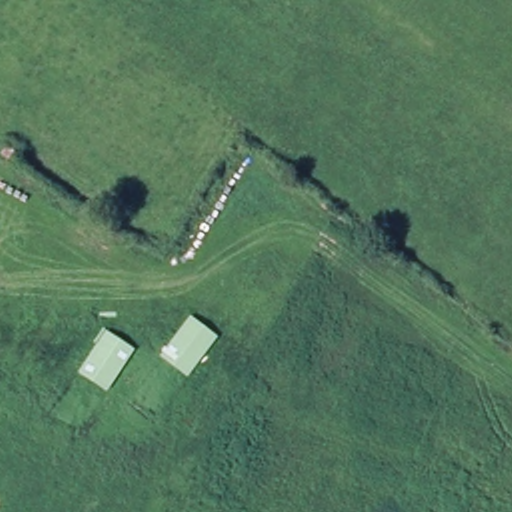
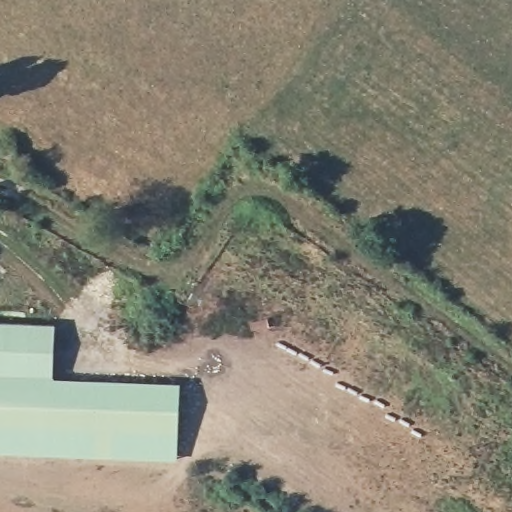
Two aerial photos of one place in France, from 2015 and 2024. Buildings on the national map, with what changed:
new [(52,375),(0,374),(0,322),(53,324),(52,375)]
new [(177,459),(0,452),(0,374),(52,375),(180,383),(177,459)]

